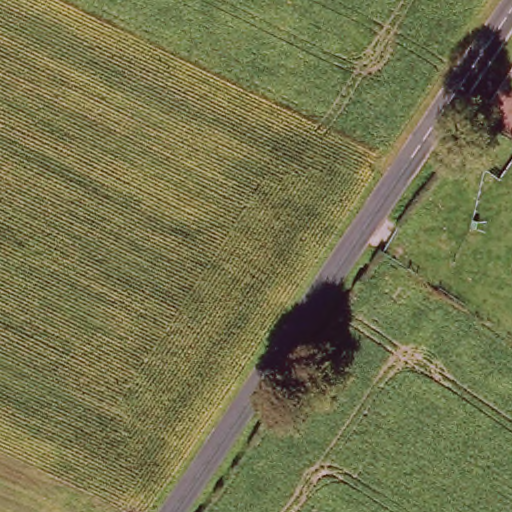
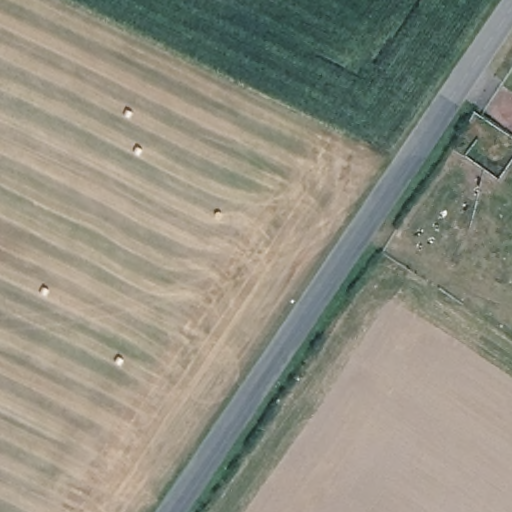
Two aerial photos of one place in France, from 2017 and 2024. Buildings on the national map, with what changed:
[]

